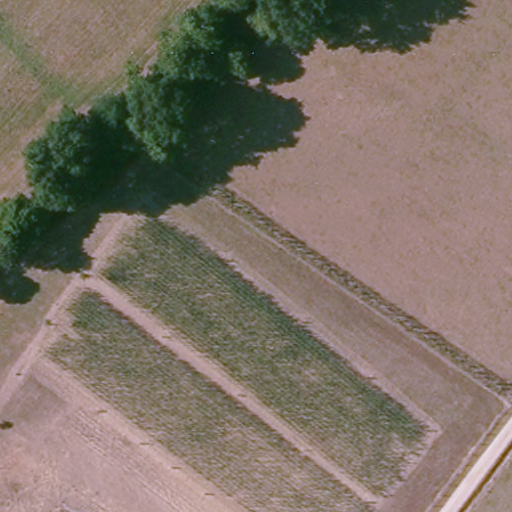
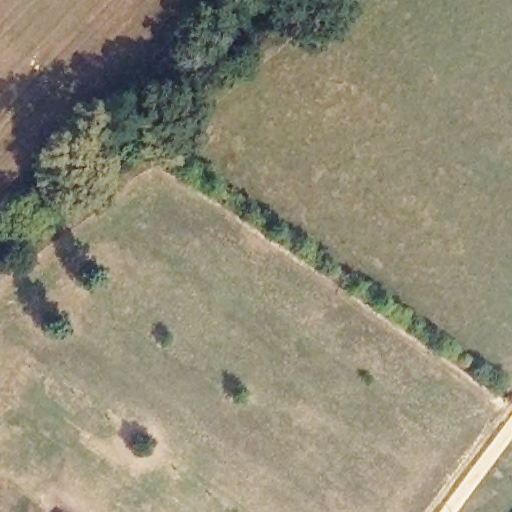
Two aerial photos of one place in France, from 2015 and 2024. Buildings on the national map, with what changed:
[]

